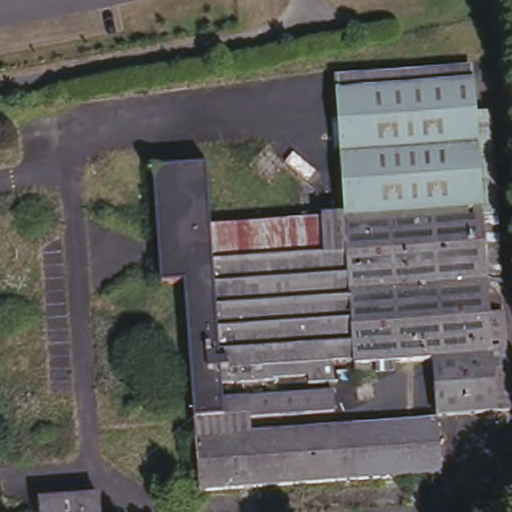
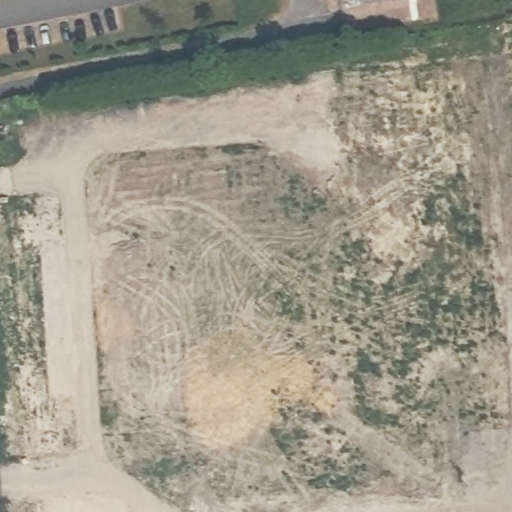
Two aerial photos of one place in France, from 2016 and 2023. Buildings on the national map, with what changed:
new [(363,10),(362,5),(356,9),(349,8),(346,3),(346,0),(407,0),(408,1),(363,10)]
demolished [(509,370),(497,373),(500,415),(438,419),(434,363),(359,369),(359,363),(335,364),(336,383),(311,385),(310,376),(273,378),(273,382),(222,386),(223,398),(224,402),(250,400),(253,436),(337,430),(440,422),(444,475),(201,492),(186,283),(163,284),(155,170),(207,166),(212,228),(323,219),(325,249),(348,248),(336,94),(474,82),(476,115),(493,114),(502,217),(499,217),(504,284),(491,285),(494,330),(506,330),(509,370)]
demolished [(334,390),(337,430),(253,436),(250,400),(224,402),(223,398),(334,390)]
demolished [(24,503),(84,500),(85,512),(24,512),(24,503)]

